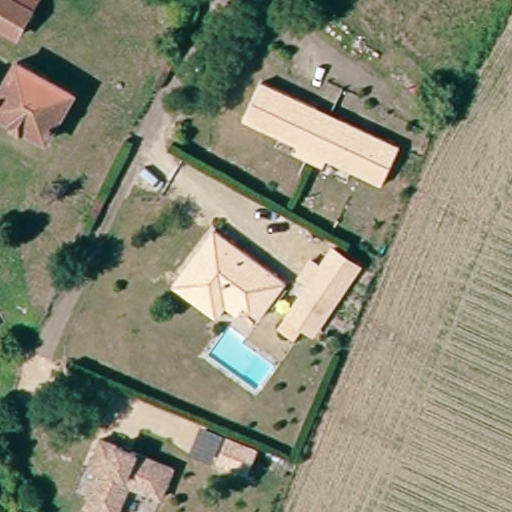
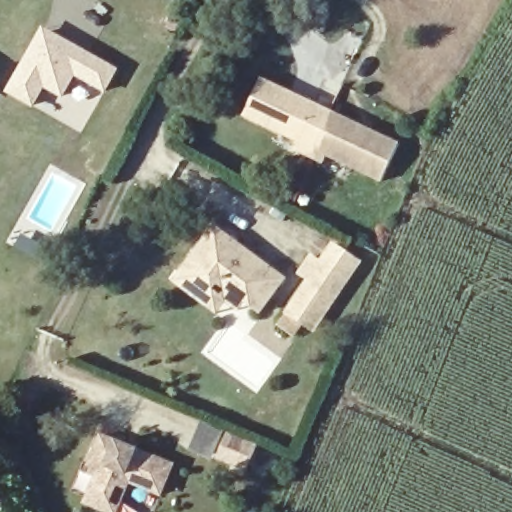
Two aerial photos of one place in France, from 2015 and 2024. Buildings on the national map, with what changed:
demolished [(25,22),(0,10),(0,0),(37,0),(25,22)]
unchanged [(179,29),(165,22),(169,13),(183,19),(179,29)]
new [(76,77),(62,97),(45,89),(34,107),(5,92),(43,25),(120,69),(105,92),(76,77)]
demolished [(0,106),(0,100),(23,56),(79,85),(54,134),(0,106)]
unchanged [(293,149),(297,141),(240,119),(256,80),(312,102),(309,110),(325,117),(309,155),(293,149)]
unchanged [(325,117),(340,124),(344,115),(400,138),(384,176),(328,154),(325,161),(309,155),(325,117)]
unchanged [(225,298),(216,310),(173,278),(179,270),(214,223),(285,275),(259,310),(244,299),(237,308),(225,298)]
new [(45,262),(32,255),(19,249),(26,235),(39,242),(52,250),(45,262)]
unchanged [(307,282),(297,275),(312,254),(321,260),(333,242),(362,263),(315,335),(304,327),(296,337),(278,325),(307,282)]
new [(204,425),(227,434),(215,461),(193,452),(204,425)]
unchanged [(100,467),(89,462),(102,432),(124,441),(122,444),(131,448),(132,445),(173,462),(161,492),(130,479),(116,512),(114,512),(86,500),(100,467)]
unchanged [(232,436),(260,447),(250,471),(222,460),(232,436)]

